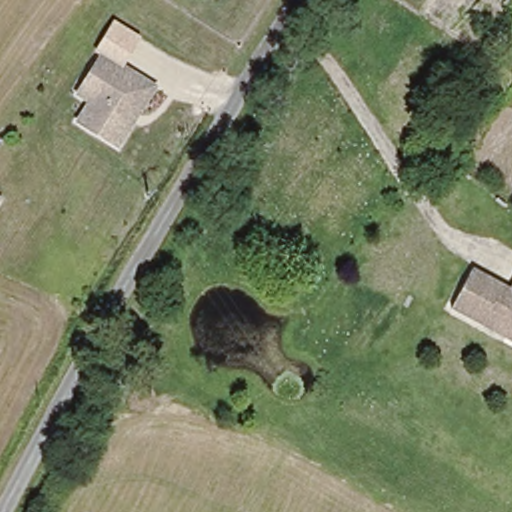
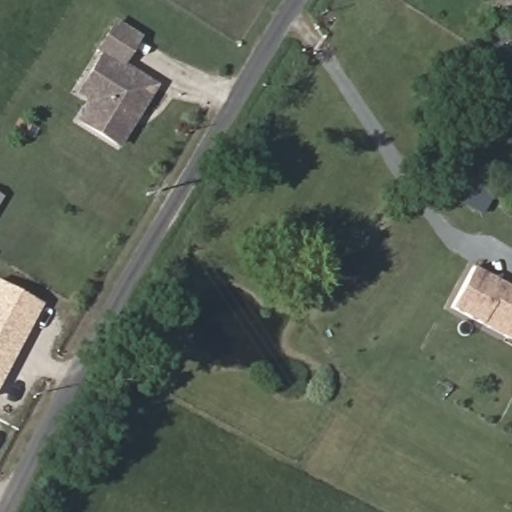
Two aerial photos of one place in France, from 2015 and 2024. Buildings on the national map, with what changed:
unchanged [(156,82),(121,142),(81,118),(94,97),(79,89),(90,69),(101,49),(156,82)]
unchanged [(477,263),(512,284),(512,338),(454,302),(477,263)]
new [(0,380),(0,281),(41,303),(0,380)]

